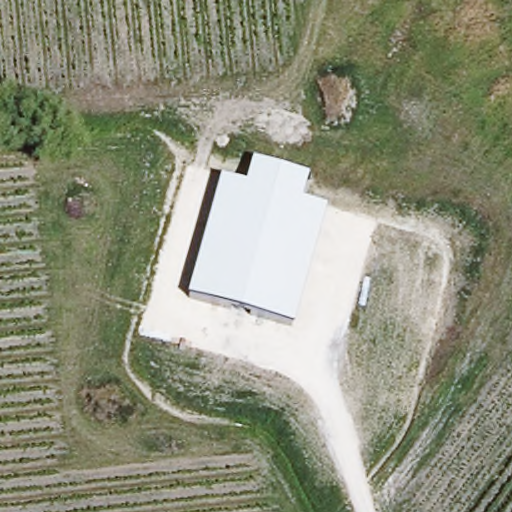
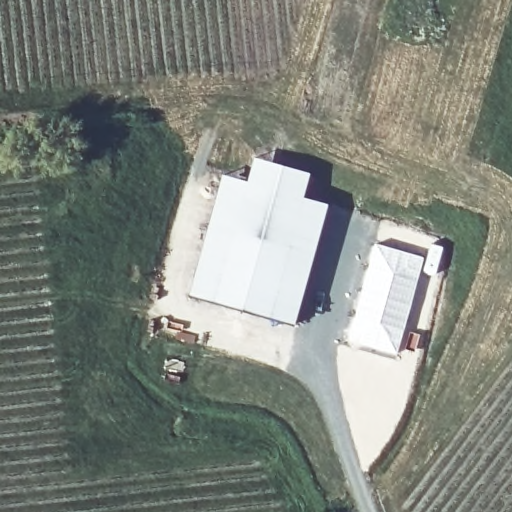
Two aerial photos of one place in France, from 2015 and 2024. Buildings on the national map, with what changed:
unchanged [(219,176),(247,183),(254,158),(310,173),(303,198),(326,204),(293,326),(187,297),(219,176)]
new [(375,242),(425,257),(430,243),(443,247),(435,275),(421,271),(396,355),(347,342),(375,242)]

